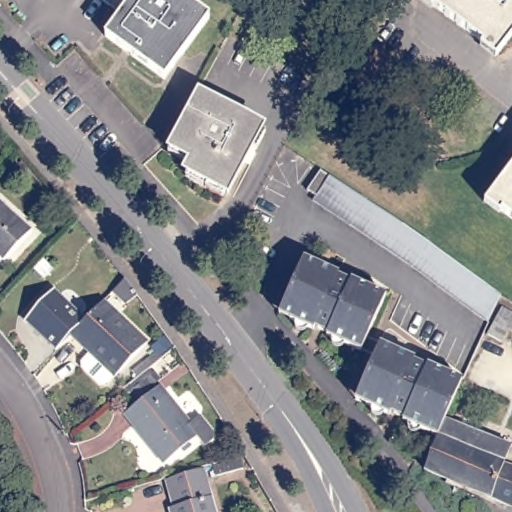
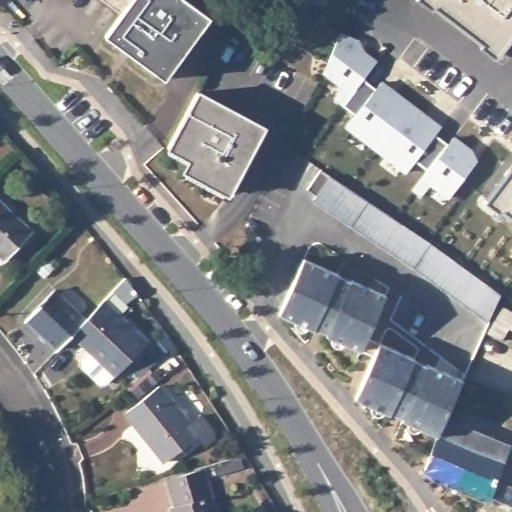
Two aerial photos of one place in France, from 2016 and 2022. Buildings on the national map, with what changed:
unchanged [(162,77),(102,35),(119,12),(102,0),(187,0),(207,15),(162,77)]
unchanged [(425,0),(512,0),(512,33),(496,54),(425,0)]
new [(337,34),(358,42),(356,47),(376,63),(362,80),(342,105),(335,100),(344,87),(321,70),(337,34)]
new [(362,80),(375,90),(381,83),(410,105),(377,150),(347,127),(355,115),(342,105),(362,80)]
unchanged [(200,92),(266,127),(231,194),(187,170),(192,160),(170,147),(200,92)]
new [(410,105),(440,128),(435,135),(447,145),(427,171),(415,161),(407,172),(377,150),(410,105)]
new [(427,171),(447,145),(452,138),(471,152),(467,156),(476,162),(448,198),(431,184),(421,197),(412,190),(427,171)]
unchanged [(512,161),(512,219),(485,197),(512,161)]
unchanged [(326,170),(421,234),(497,287),(487,314),(311,194),(326,170)]
unchanged [(31,230),(3,261),(0,258),(0,201),(31,230)]
unchanged [(302,255),(335,269),(335,271),(348,277),(351,276),(385,291),(360,347),(325,332),(326,330),(313,324),(312,326),(285,315),(280,302),(302,255)]
unchanged [(124,277),(137,295),(126,305),(111,291),(124,277)]
unchanged [(26,319),(53,290),(84,320),(70,333),(57,348),(26,319)]
unchanged [(146,341),(114,376),(112,375),(105,383),(99,383),(82,366),(82,360),(90,352),(70,333),(84,320),(103,300),(146,341)]
unchanged [(500,335),(486,327),(500,301),(512,308),(512,326),(507,323),(500,335)]
unchanged [(399,418),(400,415),(386,410),(385,412),(362,402),(358,393),(380,345),(408,356),(408,360),(422,365),(424,363),(457,377),(440,419),(433,433),(399,418)]
unchanged [(157,385),(197,435),(164,460),(125,411),(157,385)]
unchanged [(440,419),(505,445),(497,461),(512,467),(512,494),(506,506),(417,470),(433,433),(440,419)]
unchanged [(239,458),(242,467),(214,475),(212,466),(239,458)]
unchanged [(202,468),(214,512),(170,512),(169,507),(173,505),(166,478),(202,468)]

